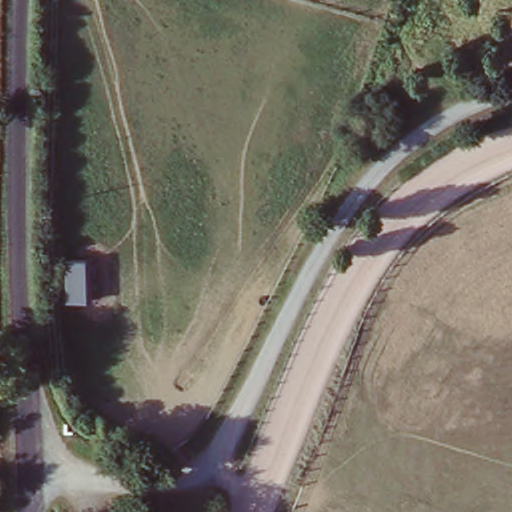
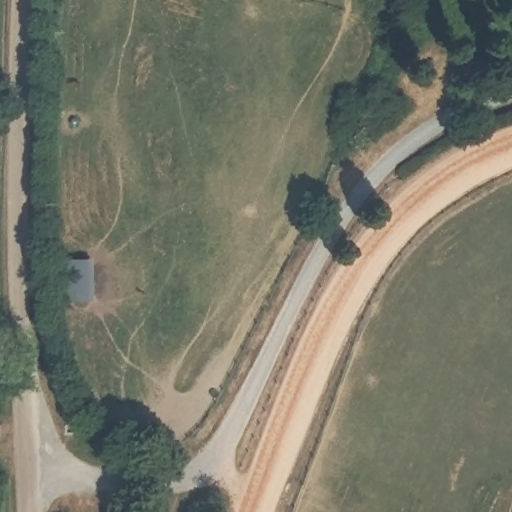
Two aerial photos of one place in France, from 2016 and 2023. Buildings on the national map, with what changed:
unchanged [(96,257),(96,303),(67,301),(68,258),(96,257)]

